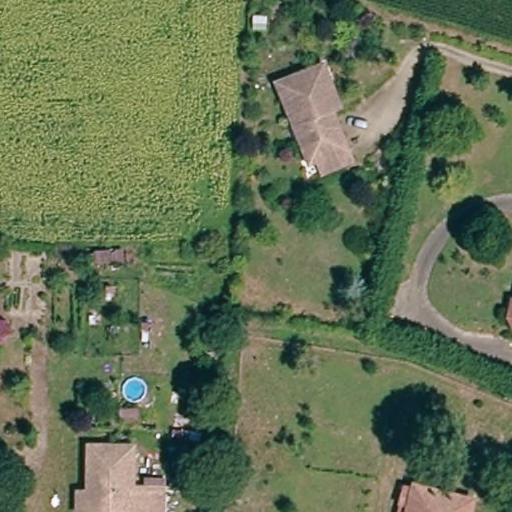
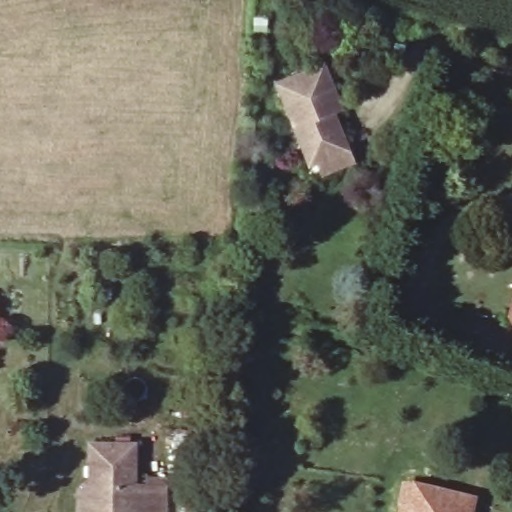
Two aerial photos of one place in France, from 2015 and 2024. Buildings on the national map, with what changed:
unchanged [(327,175),(320,160),(311,164),(295,125),(276,80),(294,73),(327,60),(337,85),(345,107),(335,112),(350,147),(357,162),(327,175)]
unchanged [(75,485),(91,486),(94,448),(113,450),(134,450),(134,476),(134,480),(166,481),(166,512),(74,512),(75,485)]
unchanged [(471,498),(468,512),(397,512),(403,482),(471,498)]

